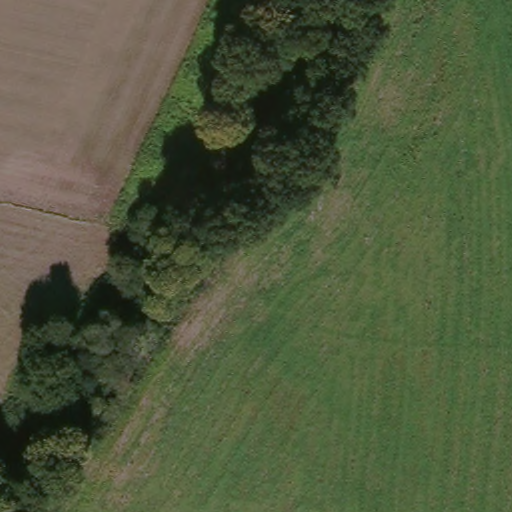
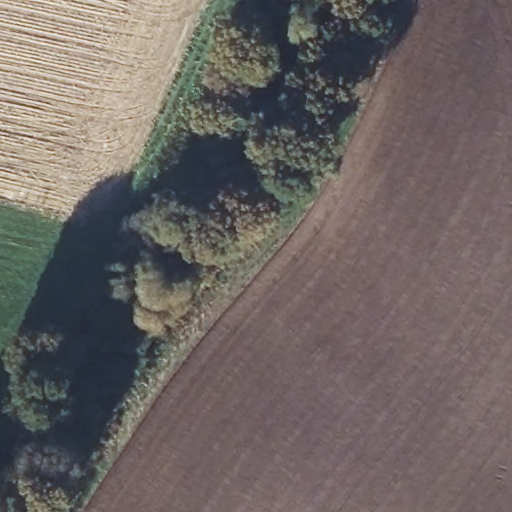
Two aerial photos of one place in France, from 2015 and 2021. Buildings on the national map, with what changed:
[]

